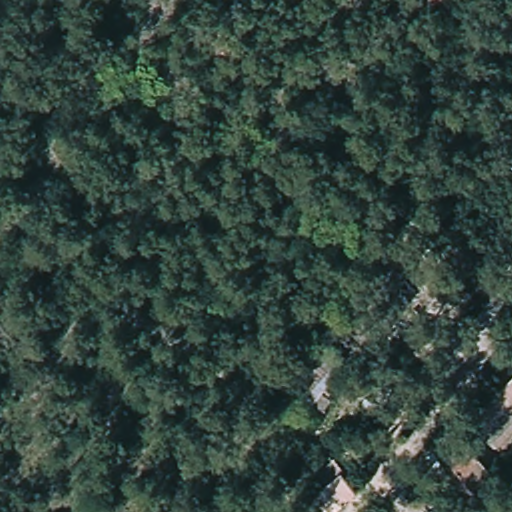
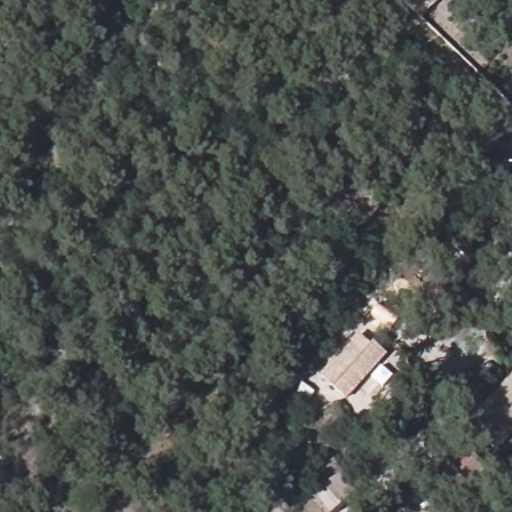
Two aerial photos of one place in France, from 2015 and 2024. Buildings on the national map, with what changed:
new [(348,401),(320,376),(358,333),(370,345),(373,342),(389,356),(348,401)]
unchanged [(512,382),(512,450),(507,456),(487,440),(476,451),(499,471),(480,491),(444,462),(512,382)]
unchanged [(332,512),(329,512),(315,492),(345,469),(359,490),(332,512)]

